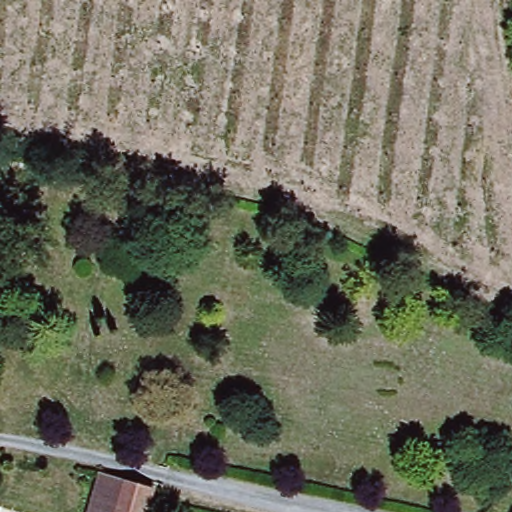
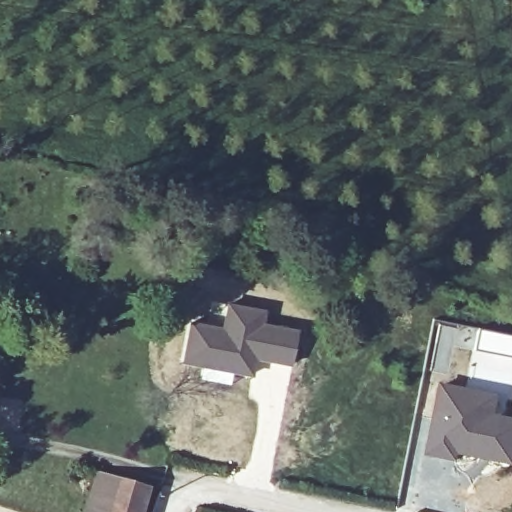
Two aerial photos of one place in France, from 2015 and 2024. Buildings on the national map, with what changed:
new [(189,319),(221,326),(226,301),(267,308),(265,321),(300,328),(292,367),(258,361),(254,377),(232,373),(231,385),(200,379),(202,367),(180,362),(189,319)]
new [(477,327),(512,334),(512,356),(472,348),(477,327)]
new [(472,348),(512,356),(512,387),(467,377),(472,348)]
new [(438,382),(501,393),(497,413),(512,417),(512,465),(460,456),(457,463),(423,456),(438,382)]
unchanged [(141,512),(83,512),(92,478),(147,492),(141,512)]

